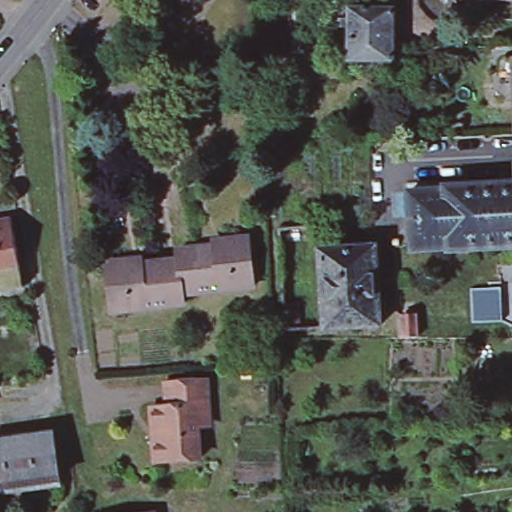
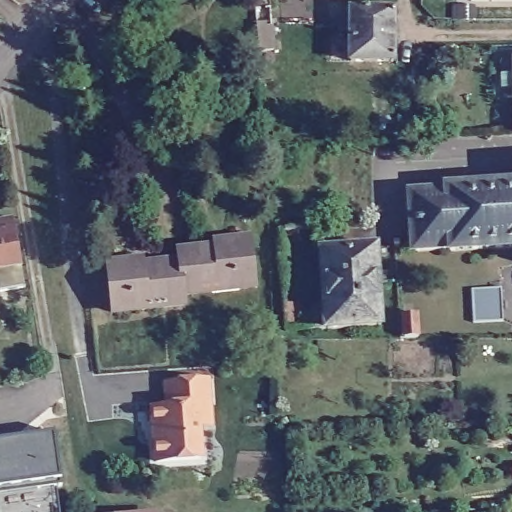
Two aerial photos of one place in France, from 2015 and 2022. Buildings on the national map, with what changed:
unchanged [(393,14),(393,65),(350,65),(350,31),(340,31),(340,24),(350,24),(350,14),(393,14)]
unchanged [(272,23),(273,50),(261,51),(259,24),(272,23)]
unchanged [(443,248),(406,250),(403,190),(440,188),(440,186),(512,183),(512,246),(443,249),(443,248)]
unchanged [(11,218),(23,288),(0,292),(0,220),(11,218)]
unchanged [(177,250),(222,245),(221,241),(248,238),(254,287),(182,294),(178,260),(177,250)]
unchanged [(371,244),(375,324),(319,328),(315,249),(371,244)]
unchanged [(183,304),(112,313),(107,264),(134,260),(134,265),(178,260),(182,294),(183,304)]
unchanged [(416,314),(417,336),(404,337),(402,314),(416,314)]
unchanged [(217,373),(220,432),(199,433),(206,472),(148,473),(144,413),(157,411),(159,379),(217,373)]
unchanged [(9,436),(9,439),(52,434),(58,487),(37,490),(36,484),(0,488),(0,436),(9,436)]

